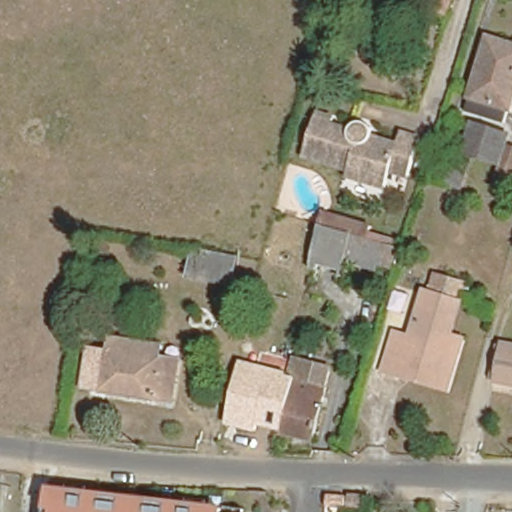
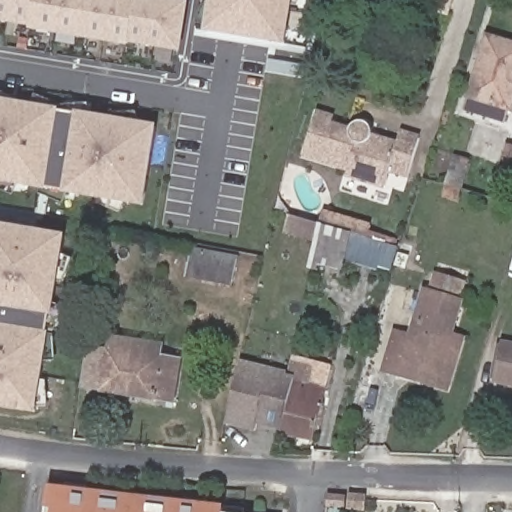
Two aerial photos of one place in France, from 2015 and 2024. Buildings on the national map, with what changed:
new [(190,2),(182,54),(130,45),(130,47),(30,30),(30,28),(0,22),(0,0),(178,0),(190,2)]
new [(286,47),(205,33),(210,0),(294,0),(286,47)]
unchanged [(426,16),(431,0),(452,0),(446,21),(426,16)]
unchanged [(512,97),(506,117),(466,105),(490,31),(512,37),(512,97)]
new [(60,109),(60,111),(76,114),(77,111),(159,126),(145,208),(64,194),(64,192),(47,190),(47,192),(0,183),(0,99),(60,109)]
unchanged [(335,111),(333,117),(348,120),(359,114),(373,118),(375,128),(398,135),(402,124),(418,129),(407,163),(391,158),(385,175),(348,163),(350,159),(306,146),(318,106),(335,111)]
unchanged [(505,124),(496,151),(472,145),(480,117),(505,124)]
unchanged [(507,138),(512,139),(512,181),(495,177),(507,138)]
unchanged [(471,152),(463,180),(446,175),(453,147),(471,152)]
unchanged [(387,263),(376,259),(375,262),(345,253),(340,270),(310,260),(320,216),(394,242),(387,263)]
new [(67,235),(54,317),(50,317),(47,332),(50,333),(36,415),(0,409),(0,224),(67,235)]
unchanged [(235,260),(231,285),(190,279),(194,254),(235,260)]
unchanged [(446,386),(402,371),(385,364),(400,328),(409,331),(415,317),(426,288),(433,291),(440,274),(470,284),(450,336),(453,337),(463,341),(446,386)]
unchanged [(512,376),(496,373),(508,333),(512,333),(512,376)]
unchanged [(144,346),(142,357),(177,363),(170,405),(101,396),(110,341),(144,346)]
unchanged [(332,366),(315,435),(280,427),(291,376),(295,357),(332,366)]
unchanged [(280,432),(257,427),(256,432),(225,425),(241,360),(292,373),(291,376),(280,427),(280,432)]
unchanged [(225,507),(226,512),(49,512),(52,488),(225,507)]
unchanged [(366,512),(348,512),(351,490),(369,491),(366,512)]

